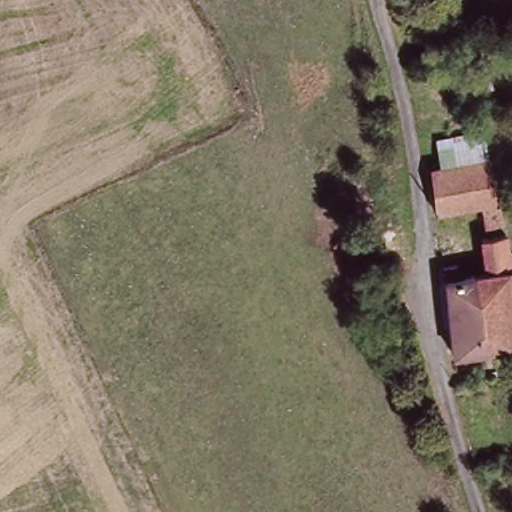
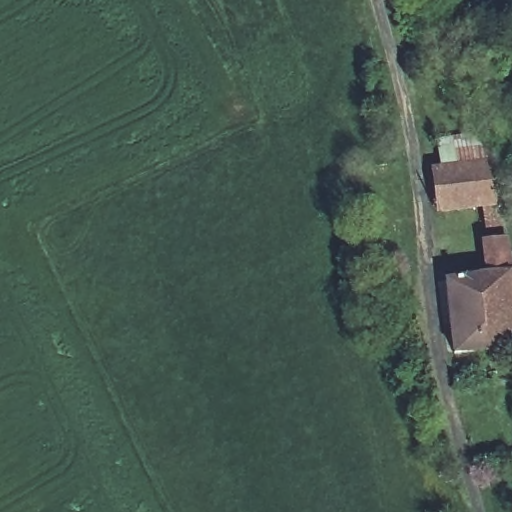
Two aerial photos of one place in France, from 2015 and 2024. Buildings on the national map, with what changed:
unchanged [(440,165),(438,136),(485,131),(492,158),(500,201),(501,224),(487,226),(483,208),(440,215),(432,167),(440,165)]
unchanged [(478,236),(502,231),(509,231),(512,249),(512,349),(458,358),(447,297),(445,266),(456,264),(458,275),(482,271),(478,236)]

